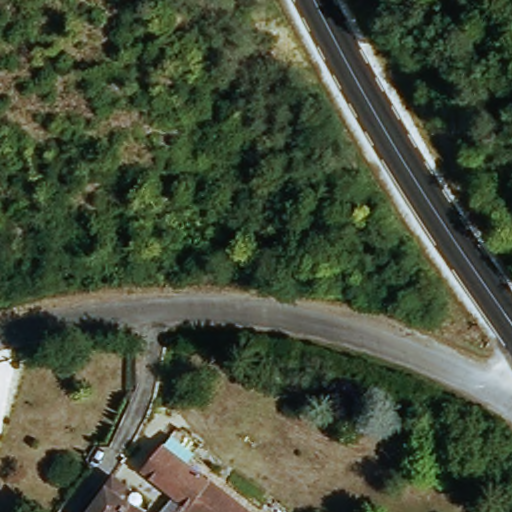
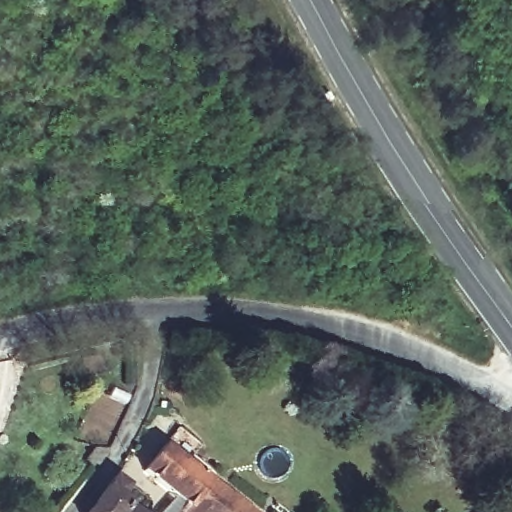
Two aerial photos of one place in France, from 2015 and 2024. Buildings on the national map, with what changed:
unchanged [(132,468),(123,462),(132,445),(137,447),(133,453),(139,456),(132,468)]
unchanged [(190,510),(182,505),(139,474),(157,447),(179,464),(184,457),(202,470),(196,478),(207,487),(190,510)]
unchanged [(125,491),(119,500),(136,512),(89,512),(112,483),(125,491)]
unchanged [(177,512),(182,505),(190,510),(207,487),(238,512),(177,512)]

